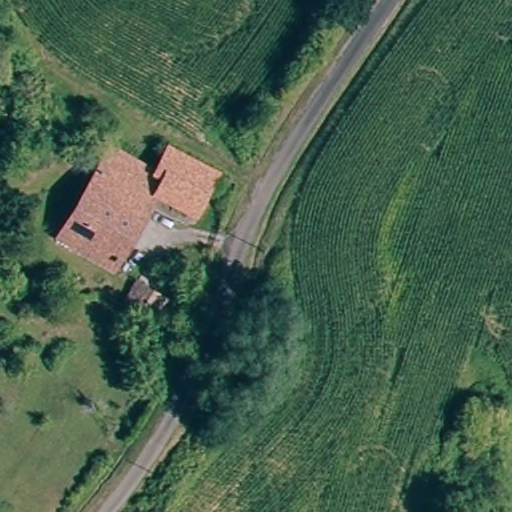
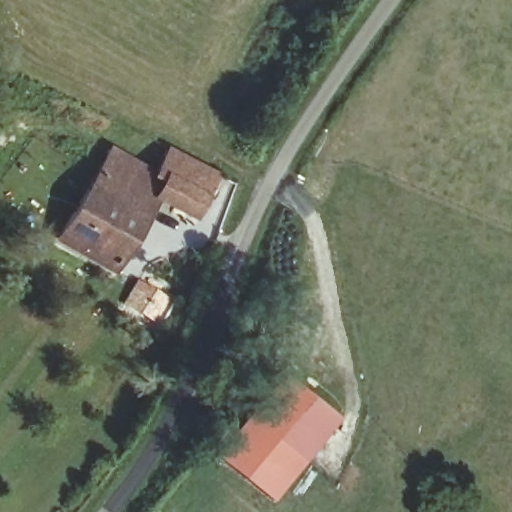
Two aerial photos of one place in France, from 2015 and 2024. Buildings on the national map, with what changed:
unchanged [(200,221),(159,200),(117,274),(60,243),(114,151),(116,147),(159,171),(172,150),(223,179),(200,221)]
unchanged [(157,318),(130,301),(140,283),(170,300),(159,320),(157,318)]
new [(276,503),(212,453),(277,374),(340,420),(276,503)]

